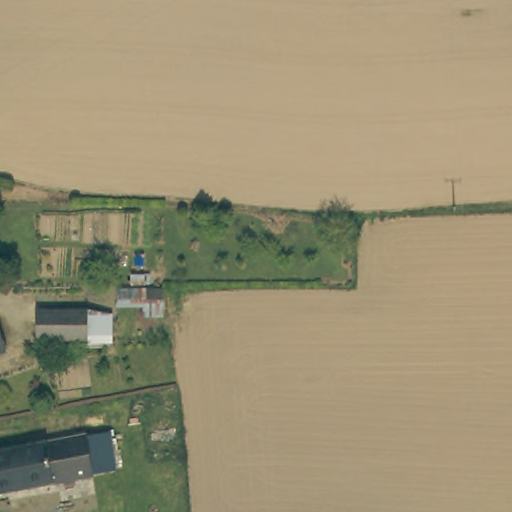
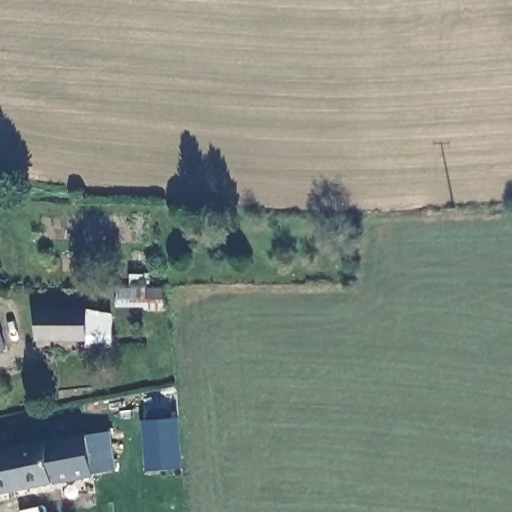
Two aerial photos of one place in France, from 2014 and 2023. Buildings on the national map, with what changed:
unchanged [(89,307),(90,314),(113,312),(114,340),(86,343),(38,341),(31,323),(39,309),(89,307)]
unchanged [(5,349),(0,351),(0,336),(5,349)]
new [(145,471),(142,419),(180,417),(184,469),(145,471)]
unchanged [(5,429),(8,446),(41,441),(76,436),(94,432),(99,473),(81,476),(0,488),(0,430),(5,429)]

